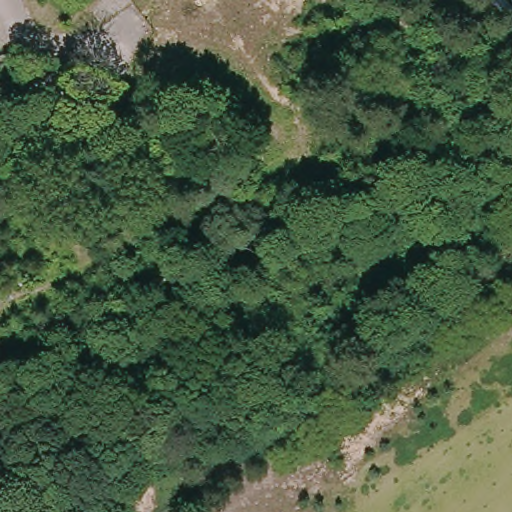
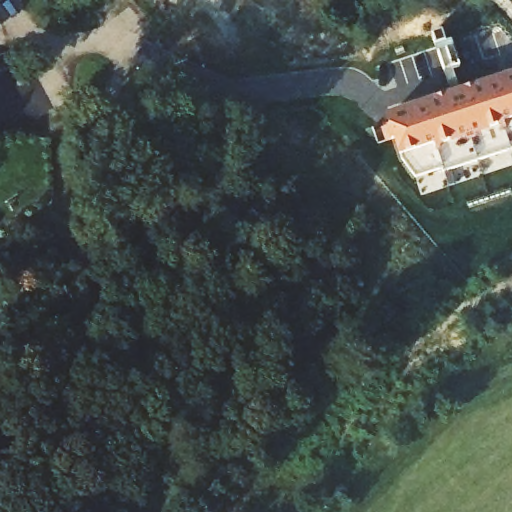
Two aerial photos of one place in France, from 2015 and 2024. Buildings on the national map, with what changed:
new [(402,162),(400,155),(386,116),(512,74),(512,147),(415,179),(402,162)]
unchanged [(1,348),(0,349),(0,348),(1,348)]
unchanged [(5,366),(12,361),(15,366),(9,371),(0,377),(0,361),(5,366)]

